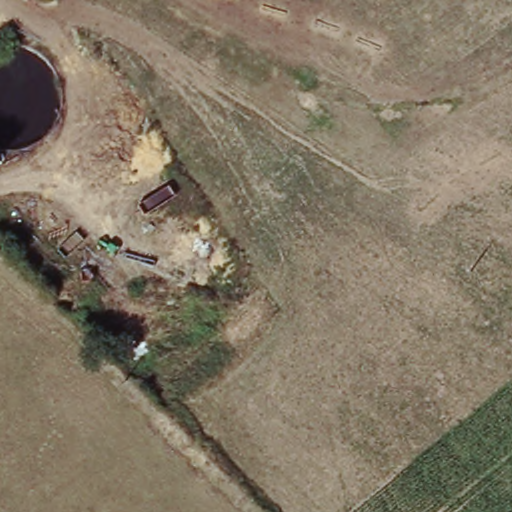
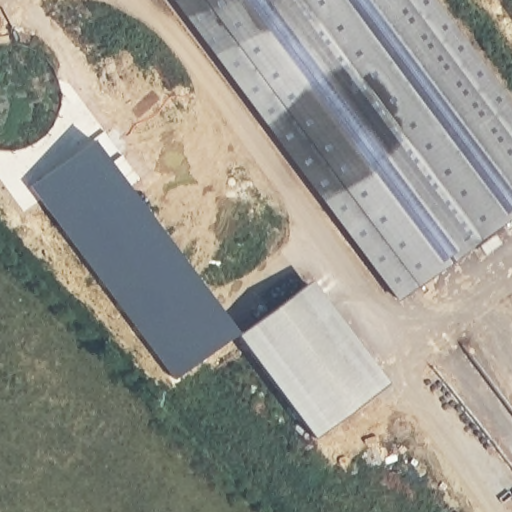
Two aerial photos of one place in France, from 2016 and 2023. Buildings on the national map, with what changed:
new [(512,116),(512,217),(395,305),(167,0),(426,0),(512,116)]
new [(305,290),(380,391),(310,443),(235,342),(305,290)]

